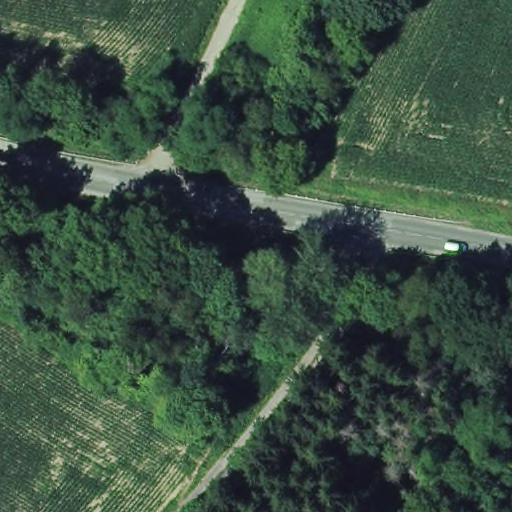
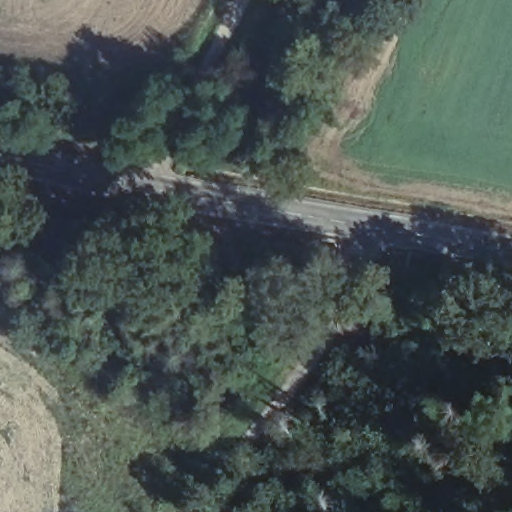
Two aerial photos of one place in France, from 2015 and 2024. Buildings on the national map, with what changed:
unchanged [(512,307),(512,325),(502,323),(505,306),(512,307)]

